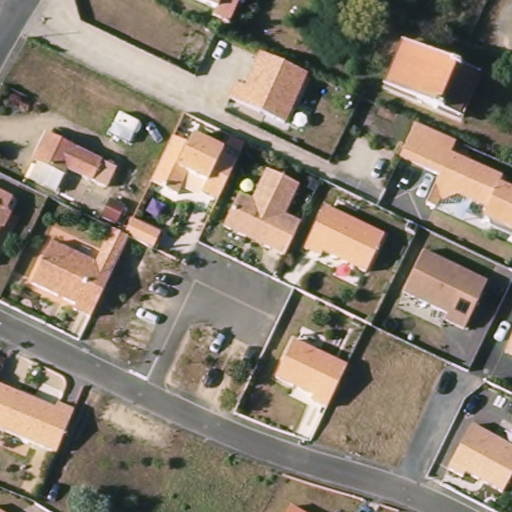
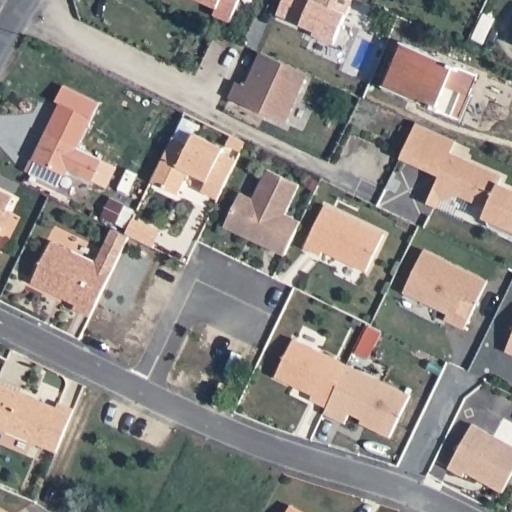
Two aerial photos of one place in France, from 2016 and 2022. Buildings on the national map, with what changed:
unchanged [(214,20),(217,13),(187,0),(242,0),(230,27),(214,20)]
new [(311,38),(314,31),(277,14),(283,0),(309,0),(311,1),(312,0),(352,0),(333,47),(311,38)]
unchanged [(402,49),(481,79),(462,122),(384,91),(402,49)]
unchanged [(231,97),(237,83),(245,85),(259,52),(308,73),(286,125),(231,97)]
unchanged [(491,207),(455,195),(434,205),(429,202),(438,173),(399,159),(414,125),(454,142),(449,153),(504,176),(499,186),(512,191),(512,234),(483,221),(491,207)]
unchanged [(108,186),(94,180),(68,170),(65,174),(33,159),(46,132),(103,160),(116,167),(108,186)]
unchanged [(159,167),(171,142),(188,151),(193,140),(223,155),(221,159),(236,166),(218,204),(217,204),(200,195),(206,185),(187,176),(176,199),(150,185),(159,167)]
unchanged [(297,184),(287,213),(300,221),(282,257),(224,227),(241,193),(253,199),(265,170),(297,184)]
unchanged [(12,197),(5,210),(11,213),(4,228),(0,227),(0,228),(0,190),(12,197)]
unchanged [(100,216),(108,197),(122,205),(113,223),(100,216)]
unchanged [(322,256),(320,260),(304,252),(325,211),(384,239),(365,277),(322,256)]
unchanged [(139,242),(128,236),(123,232),(130,217),(131,217),(158,232),(151,247),(139,242)]
unchanged [(73,313),(75,308),(31,287),(51,246),(96,267),(105,247),(122,255),(112,275),(90,321),(73,313)]
unchanged [(443,323),(448,311),(402,287),(422,248),(488,279),(463,333),(443,323)]
unchanged [(512,343),(512,354),(508,352),(512,343)]
unchanged [(333,398),(327,410),(311,402),(313,398),(276,380),(293,345),(346,370),(333,398)]
new [(390,437),(360,424),(361,419),(348,413),(344,423),(324,415),(327,410),(333,398),(346,370),(349,366),(409,395),(390,437)]
unchanged [(63,438),(55,457),(0,431),(0,386),(55,412),(58,407),(73,414),(63,438)]
unchanged [(502,492),(465,471),(462,476),(448,467),(472,423),(512,445),(512,474),(509,478),(502,492)]
unchanged [(297,512),(294,512),(295,511),(297,512)]

